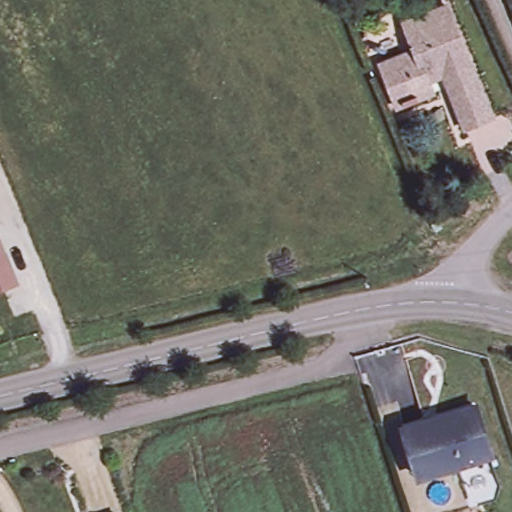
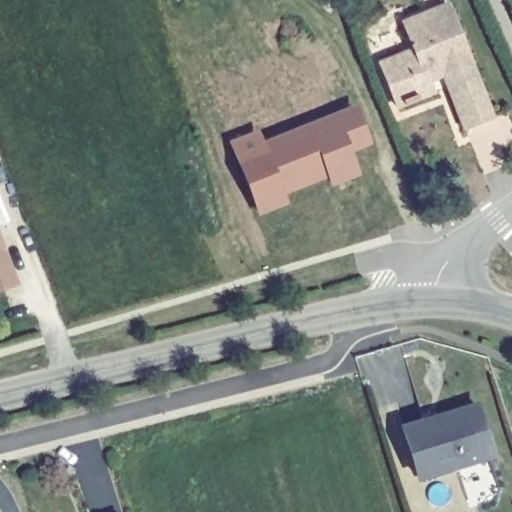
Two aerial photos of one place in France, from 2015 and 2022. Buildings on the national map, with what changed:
unchanged [(395,104),(378,58),(413,45),(403,19),(447,3),(491,113),(465,125),(447,81),(432,88),(395,104)]
new [(238,166),(229,141),(260,129),(264,139),(355,103),(371,143),(352,151),(361,175),(330,186),(327,177),(285,194),(288,204),(257,216),(238,166)]
unchanged [(0,293),(0,238),(18,286),(0,293)]
unchanged [(475,404),(491,452),(419,476),(403,428),(475,404)]

